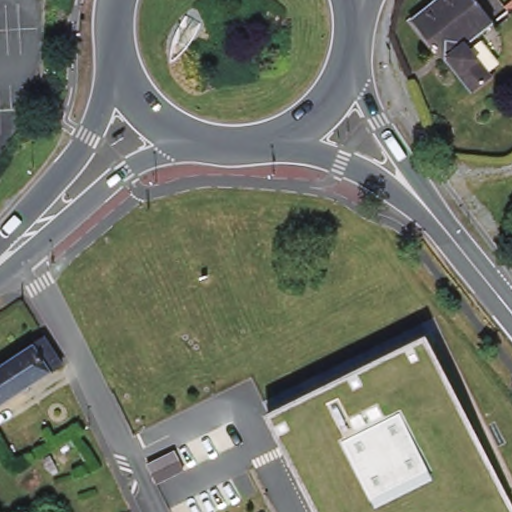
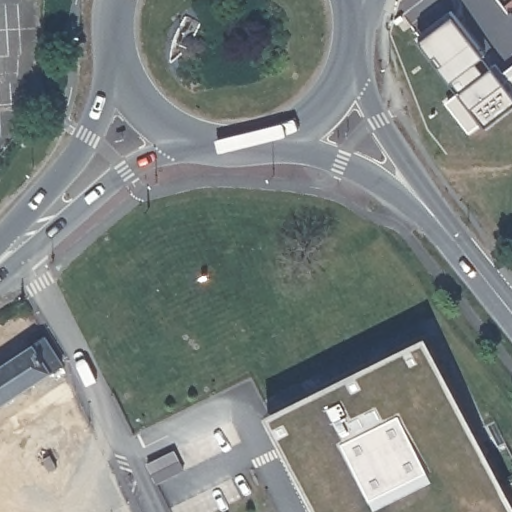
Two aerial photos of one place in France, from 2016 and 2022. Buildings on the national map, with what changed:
demolished [(442,59),(440,61),(409,21),(435,0),(468,0),(486,24),(461,43),(485,73),(487,76),(469,91),(459,79),(442,59)]
new [(512,65),(512,106),(485,125),(482,121),(470,130),(447,100),(462,91),(421,41),(454,17),(501,73),(512,65)]
new [(4,29),(7,105),(0,105),(0,29),(4,29)]
unchanged [(504,492),(512,508),(512,512),(318,512),(269,414),(429,333),(504,492)]
unchanged [(0,405),(0,367),(47,337),(63,362),(65,364),(0,405)]
unchanged [(58,467),(51,471),(45,460),(51,456),(58,467)]

